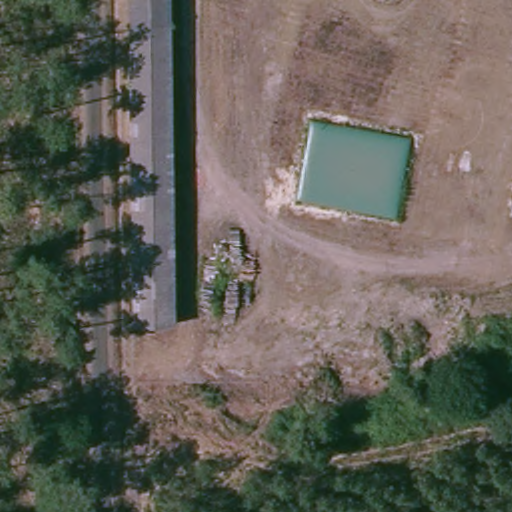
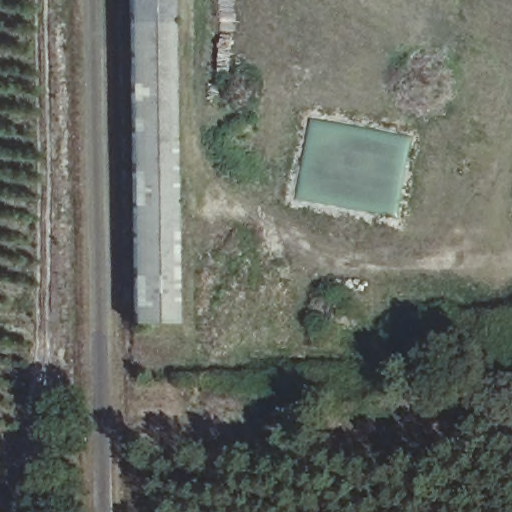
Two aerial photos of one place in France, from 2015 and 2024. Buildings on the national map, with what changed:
unchanged [(130,327),(125,0),(175,0),(178,328),(130,327)]

